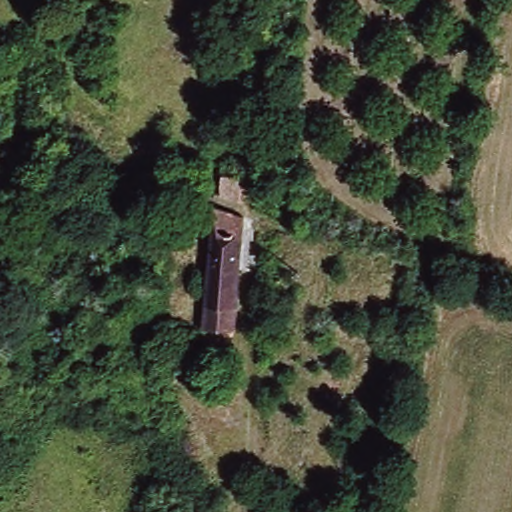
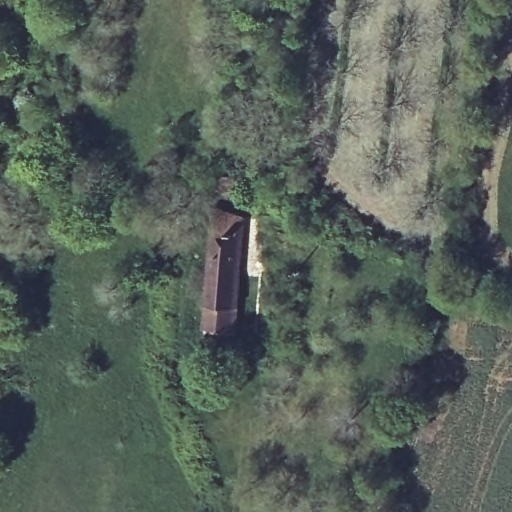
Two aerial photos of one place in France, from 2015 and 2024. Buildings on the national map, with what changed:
unchanged [(205,310),(212,209),(242,218),(237,311),(235,334),(202,333),(205,310)]

